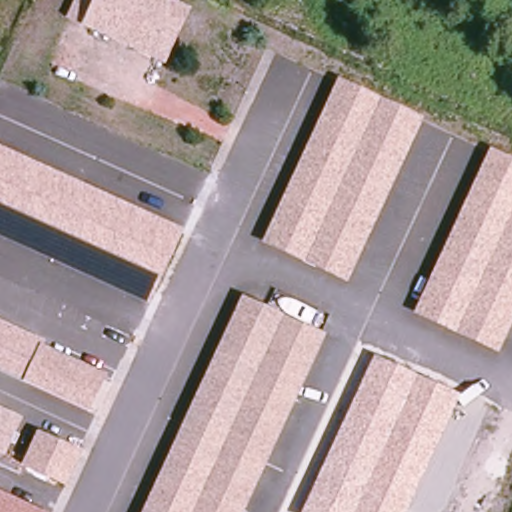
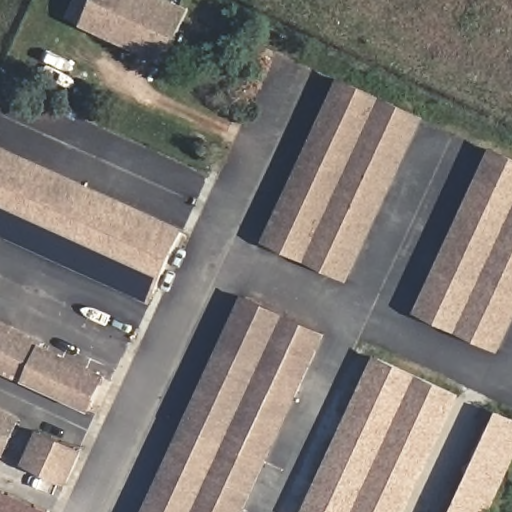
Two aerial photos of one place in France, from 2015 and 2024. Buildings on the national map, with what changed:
unchanged [(165,64),(82,27),(66,17),(73,0),(174,0),(191,7),(165,64)]
unchanged [(350,282),(262,244),(337,76),(426,117),(350,282)]
unchanged [(150,303),(0,236),(0,144),(184,228),(150,303)]
unchanged [(500,353),(412,313),(491,147),(512,157),(512,328),(500,353)]
unchanged [(251,293),(332,333),(245,512),(144,512),(251,293)]
unchanged [(42,344),(106,374),(87,412),(21,382),(22,378),(0,369),(0,319),(46,340),(42,344)]
unchanged [(461,394),(406,512),(303,512),(375,355),(461,394)]
unchanged [(0,453),(0,404),(22,415),(4,455),(0,453)]
new [(512,417),(512,462),(489,512),(453,512),(498,412),(512,417)]
unchanged [(70,487),(22,468),(37,430),(85,451),(70,487)]
unchanged [(0,494),(38,512),(0,512),(0,494)]

